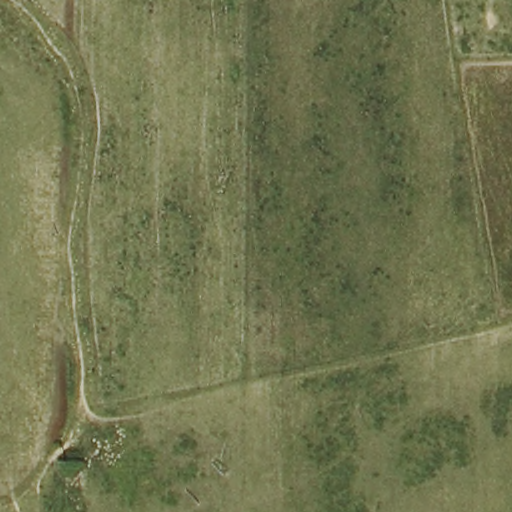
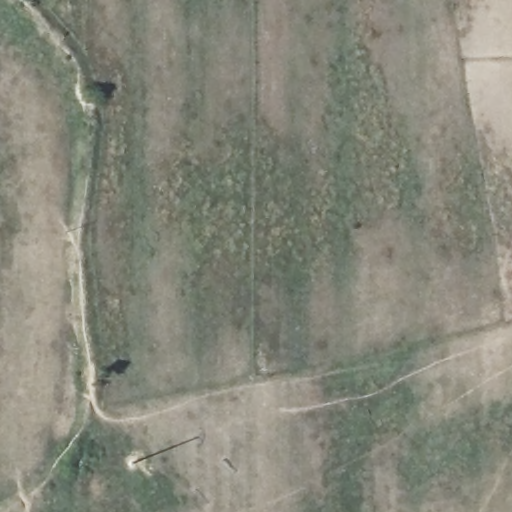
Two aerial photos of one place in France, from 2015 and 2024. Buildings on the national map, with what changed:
[]

